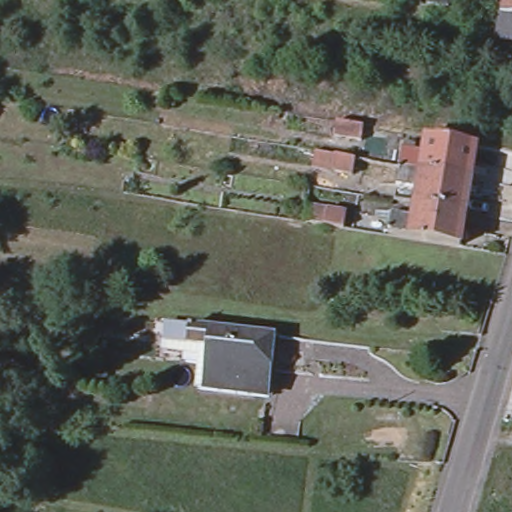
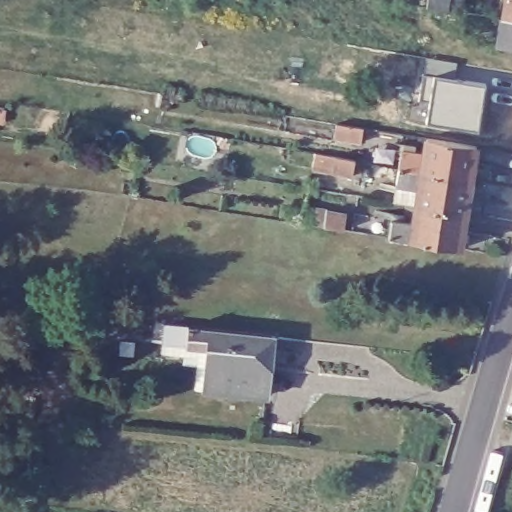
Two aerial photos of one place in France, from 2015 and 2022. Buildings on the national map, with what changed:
unchanged [(506,0),(512,0),(512,16),(504,14),(506,0)]
unchanged [(512,16),(512,48),(499,46),(504,14),(512,16)]
new [(423,70),(484,80),(476,125),(426,117),(429,97),(418,95),(423,70)]
unchanged [(361,123),(359,138),(333,134),(335,119),(361,123)]
unchanged [(428,185),(405,182),(408,164),(408,163),(411,146),(433,150),(436,133),(484,141),(479,175),(479,176),(474,209),(426,201),(428,185)]
unchanged [(423,219),(426,201),(474,209),(469,244),(420,236),(397,232),(399,215),(423,219)]
unchanged [(202,386),(204,362),(198,361),(198,359),(199,356),(178,353),(179,351),(163,349),(166,319),(188,322),(271,331),(268,366),(264,393),(202,386)]

